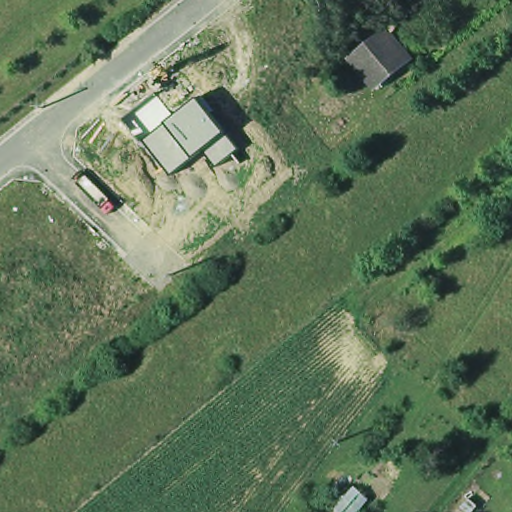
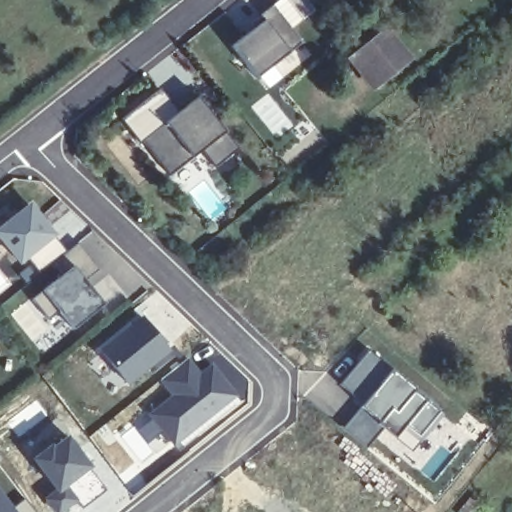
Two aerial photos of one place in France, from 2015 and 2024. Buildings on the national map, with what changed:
new [(251,29),(248,25),(259,17),(258,16),(271,5),(301,43),(256,79),(229,46),(251,29)]
unchanged [(358,56),(391,30),(409,55),(378,80),(358,56)]
unchanged [(218,168),(203,150),(171,176),(142,141),(139,144),(121,120),(158,87),(177,114),(196,96),(237,150),(218,168)]
new [(58,237),(20,266),(0,238),(0,228),(30,203),(58,237)]
new [(61,275),(51,263),(76,243),(98,269),(81,283),(88,291),(90,289),(103,304),(71,329),(57,311),(46,320),(30,299),(61,275)]
new [(141,314),(171,350),(128,385),(96,348),(141,314)]
new [(368,349),(392,369),(361,406),(339,384),(368,349)]
new [(236,397),(173,448),(148,415),(173,397),(161,380),(186,359),(201,377),(211,368),(236,397)]
new [(361,406),(392,369),(442,412),(410,451),(393,438),(381,428),(364,449),(340,429),(359,407),(361,406)]
new [(83,507),(78,502),(65,512),(53,512),(42,498),(53,490),(30,458),(68,434),(93,470),(106,489),(83,507)]
new [(13,506),(23,498),(34,512),(0,512),(0,488),(13,506)]

